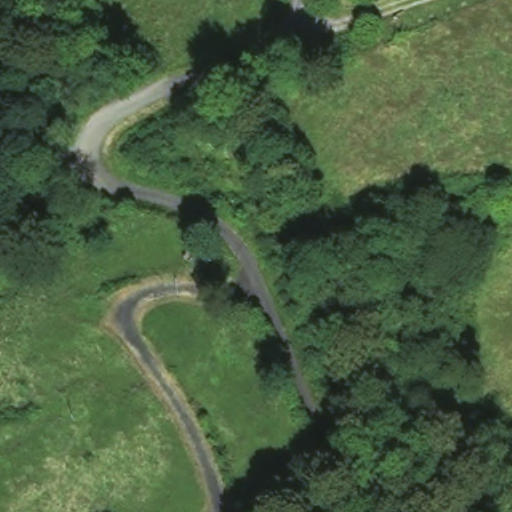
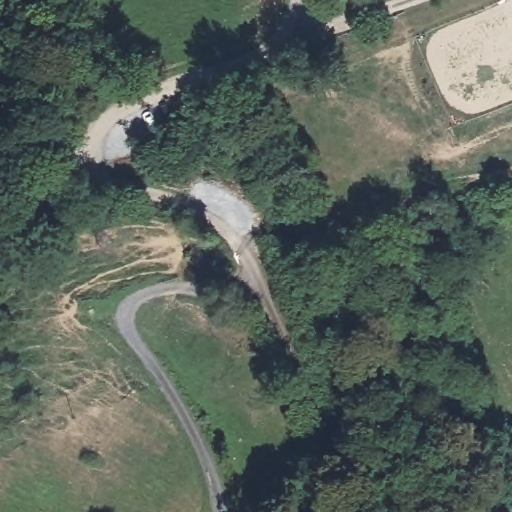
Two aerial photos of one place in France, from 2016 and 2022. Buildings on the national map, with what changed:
unchanged [(200,274),(176,258),(188,244),(209,264),(200,274)]

